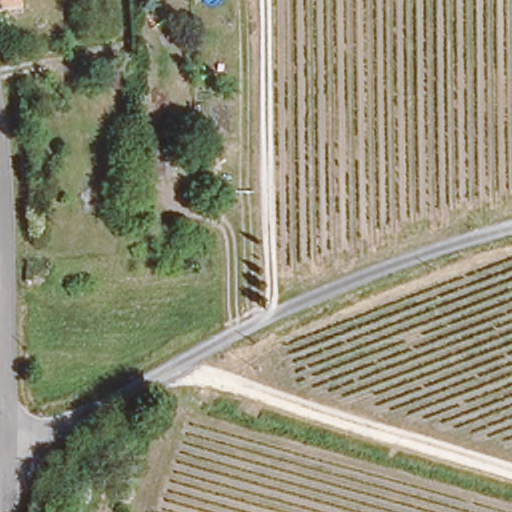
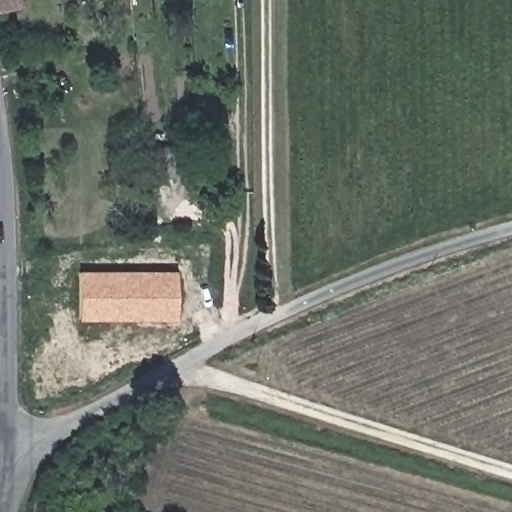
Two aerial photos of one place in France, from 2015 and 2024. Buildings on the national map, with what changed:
unchanged [(21,10),(0,13),(0,0),(20,0),(21,10)]
new [(79,319),(79,270),(176,270),(176,319),(79,319)]

